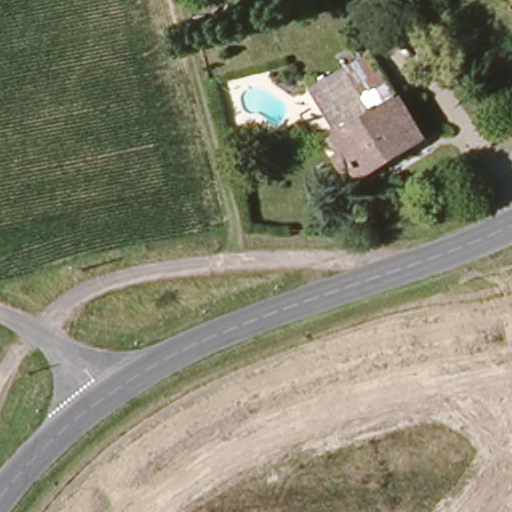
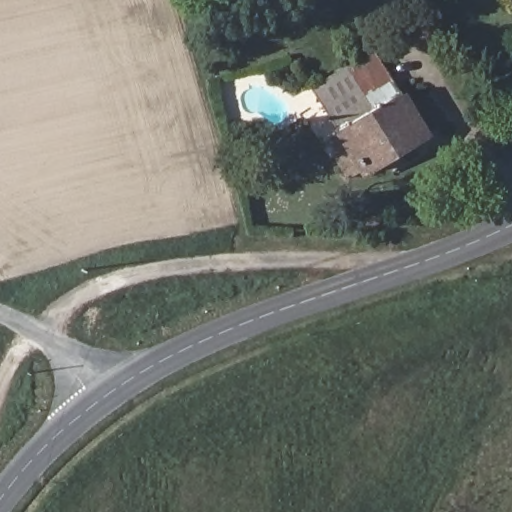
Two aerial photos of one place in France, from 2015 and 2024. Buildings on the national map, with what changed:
unchanged [(344,155),(335,141),(341,136),(313,91),(347,72),(342,64),(369,48),(374,56),(378,54),(428,139),(366,176),(365,174),(349,182),(336,160),(344,155)]

